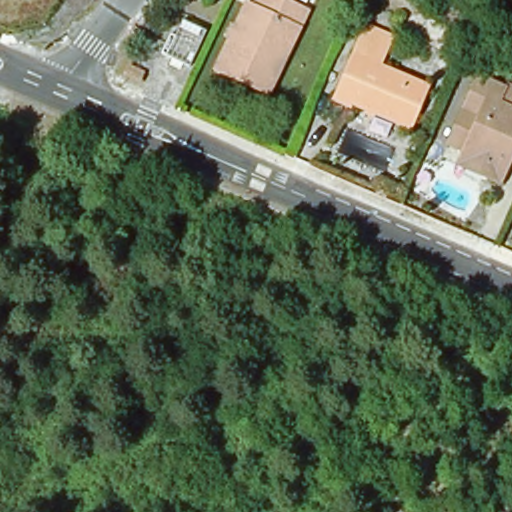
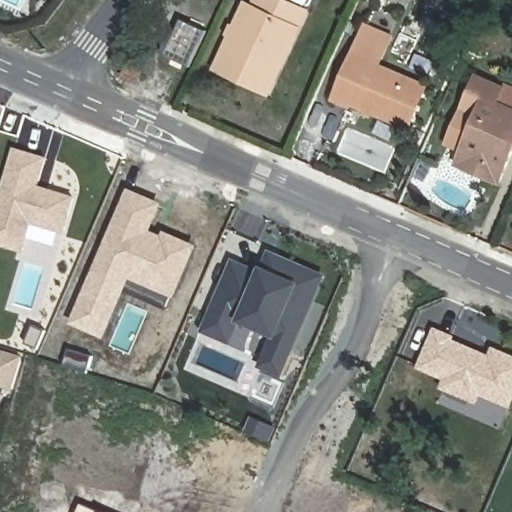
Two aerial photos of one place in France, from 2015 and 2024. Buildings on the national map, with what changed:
unchanged [(255,88),(213,68),(243,3),(250,7),(254,0),(280,0),(305,12),(287,52),(268,94),(255,88)]
unchanged [(163,55),(180,19),(204,30),(186,66),(163,55)]
unchanged [(337,96),(355,54),(364,34),(389,45),(380,65),(429,87),(411,127),(337,96)]
unchanged [(465,154),(450,147),(480,80),(507,93),(501,107),(512,112),(512,165),(502,188),(486,181),(459,169),(465,154)]
new [(0,187),(12,147),(46,157),(37,185),(73,196),(62,234),(30,225),(22,253),(0,247),(0,187)]
new [(70,323),(129,188),(163,203),(150,231),(161,236),(163,231),(197,245),(173,298),(129,279),(104,339),(70,323)]
new [(199,332),(231,258),(258,270),(261,265),(269,250),(326,274),(281,377),(257,367),(271,336),(241,324),(228,344),(199,332)]
new [(434,327),(455,336),(454,340),(489,355),(492,346),(512,355),(512,405),(510,408),(482,396),(477,405),(439,390),(443,380),(416,368),(434,327)]
new [(11,389),(0,385),(0,352),(20,359),(11,389)]
new [(78,512),(82,503),(102,512),(78,512)]

